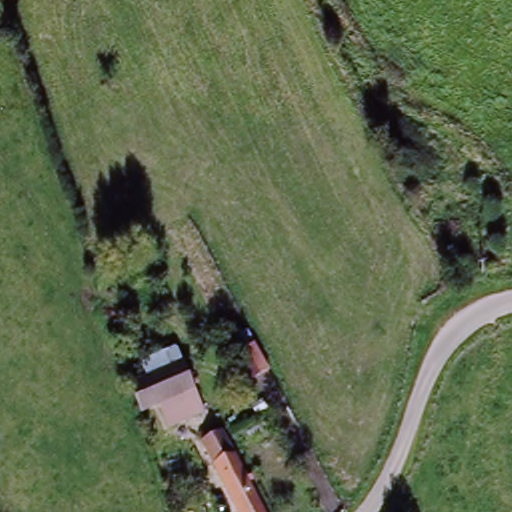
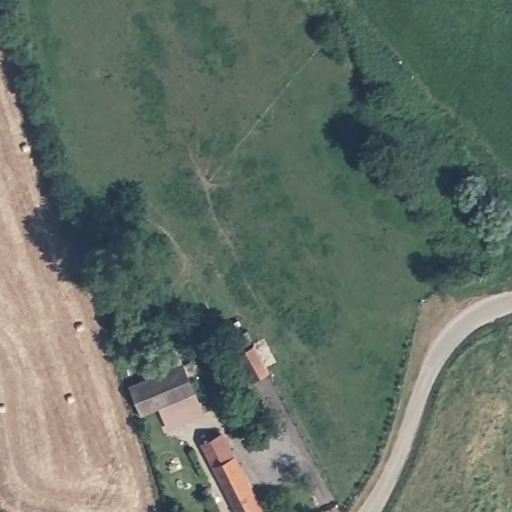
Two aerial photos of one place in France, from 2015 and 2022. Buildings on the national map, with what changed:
unchanged [(165,410),(142,417),(132,384),(138,381),(132,367),(173,348),(180,365),(185,362),(211,415),(175,428),(165,410)]
unchanged [(176,438),(197,422),(209,438),(190,453),(176,438)]
unchanged [(221,478),(215,470),(232,457),(237,466),(269,512),(246,512),(221,478)]

